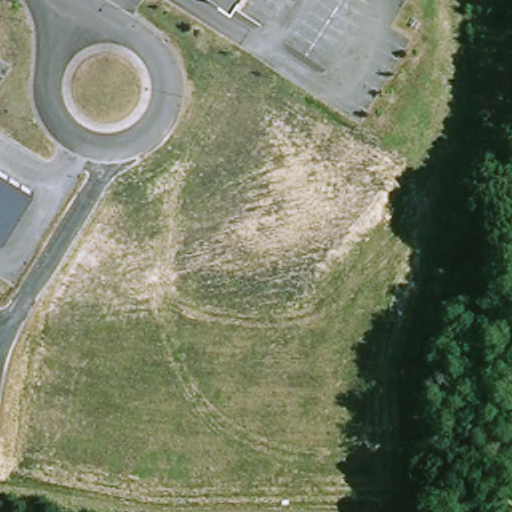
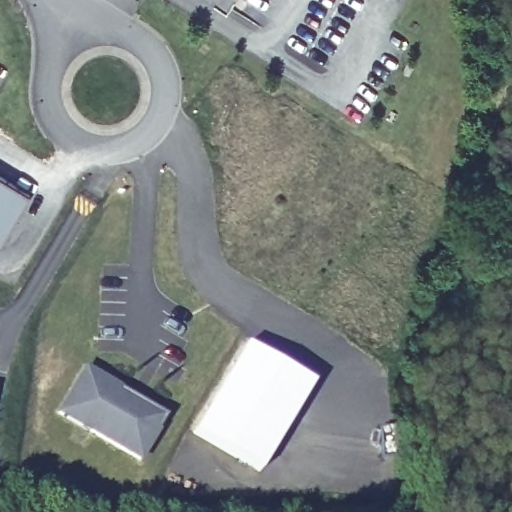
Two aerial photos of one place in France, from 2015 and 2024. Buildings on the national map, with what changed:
unchanged [(219,0),(237,0),(231,8),(219,0)]
unchanged [(0,174),(35,195),(5,245),(0,243),(0,174)]
new [(246,345),(311,383),(258,471),(194,432),(246,345)]
new [(157,430),(138,460),(59,412),(85,369),(147,406),(165,416),(157,430)]

